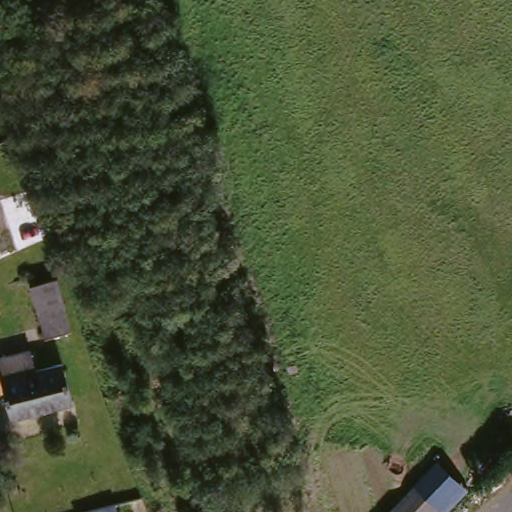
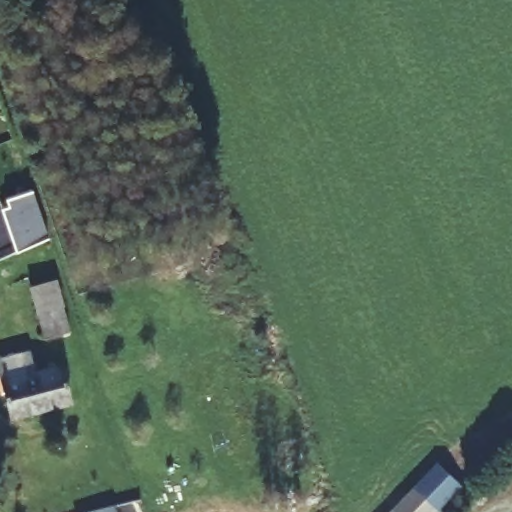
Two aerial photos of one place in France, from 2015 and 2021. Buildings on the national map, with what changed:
new [(2,210),(10,208),(7,199),(33,190),(50,238),(17,252),(2,210)]
unchanged [(56,281),(64,304),(61,305),(69,332),(46,338),(30,288),(56,281)]
unchanged [(0,368),(0,360),(27,352),(34,372),(61,363),(72,401),(12,417),(6,395),(0,397),(0,375),(1,375),(0,368)]
unchanged [(442,512),(440,511),(417,488),(438,463),(467,492),(449,512),(442,512)]
unchanged [(440,511),(439,512),(393,512),(417,488),(440,511)]
unchanged [(114,512),(93,512),(111,506),(114,512)]

